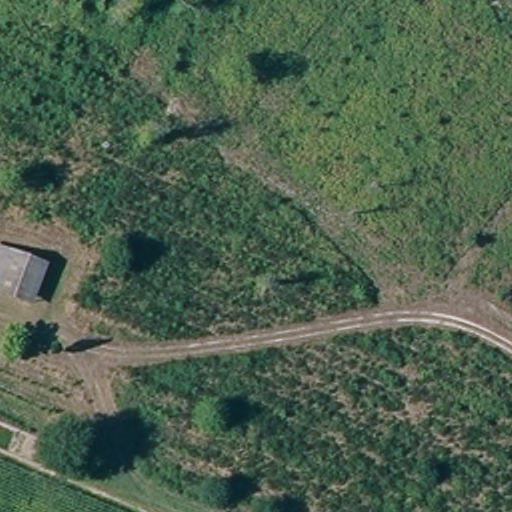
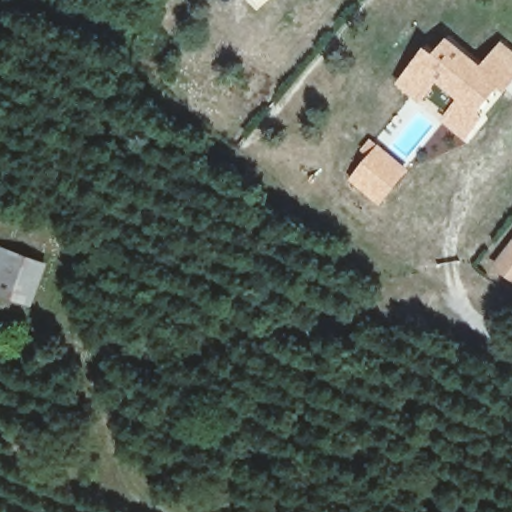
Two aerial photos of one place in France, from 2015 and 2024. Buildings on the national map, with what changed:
new [(449,36),(482,65),(502,40),(512,48),(512,84),(506,91),(500,87),(478,112),(484,119),(467,140),(442,120),(449,112),(428,95),(420,105),(398,83),(427,47),(434,54),(449,36)]
new [(360,150),(370,138),(381,140),(390,154),(410,170),(379,206),(348,180),(367,156),(360,150)]
new [(512,241),(512,279),(494,265),(512,241)]
unchanged [(41,263),(25,303),(0,293),(0,258),(4,249),(41,263)]
demolished [(10,366),(0,396),(0,363),(10,366)]
demolished [(56,468),(61,451),(82,457),(76,476),(56,468)]

